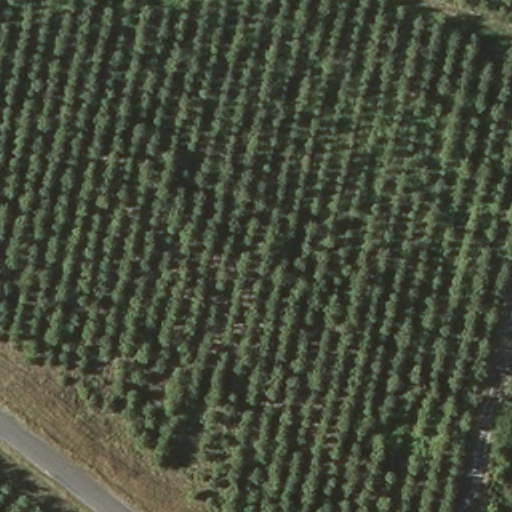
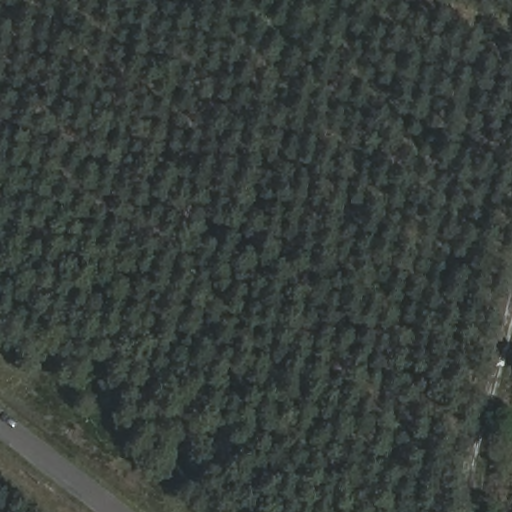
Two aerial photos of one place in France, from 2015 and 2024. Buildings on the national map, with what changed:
[]

